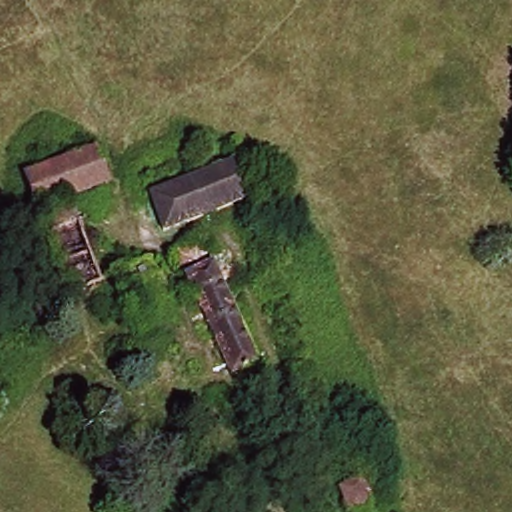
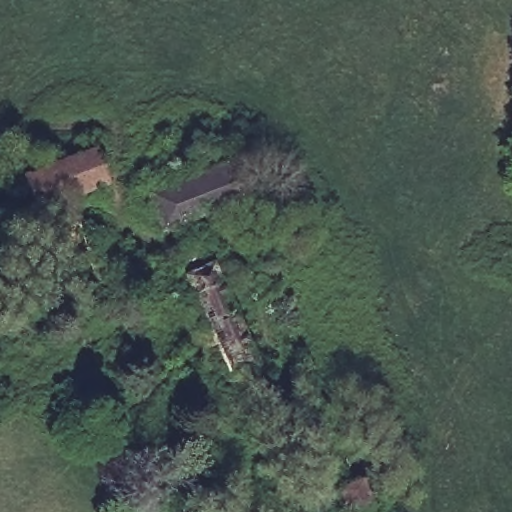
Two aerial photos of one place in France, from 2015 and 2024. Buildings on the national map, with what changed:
unchanged [(157,200),(149,178),(242,147),(248,165),(157,200)]
unchanged [(102,152),(112,185),(43,208),(32,175),(102,152)]
unchanged [(262,203),(171,236),(157,200),(248,165),(262,203)]
unchanged [(74,299),(46,219),(77,207),(105,287),(74,299)]
unchanged [(238,388),(182,264),(207,252),(264,377),(238,388)]
unchanged [(125,271),(145,262),(154,280),(132,288),(125,271)]
unchanged [(366,509),(363,512),(341,512),(338,499),(359,490),(366,509)]

